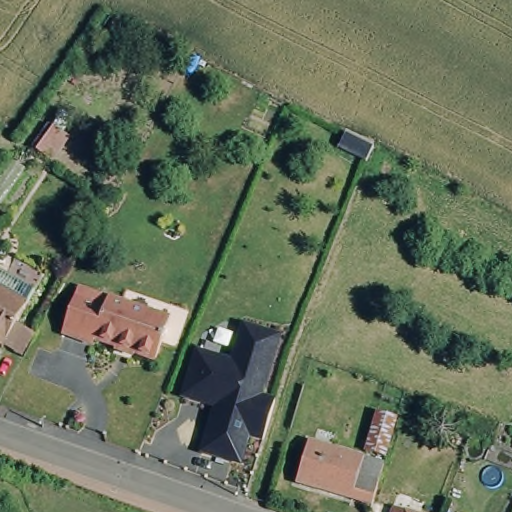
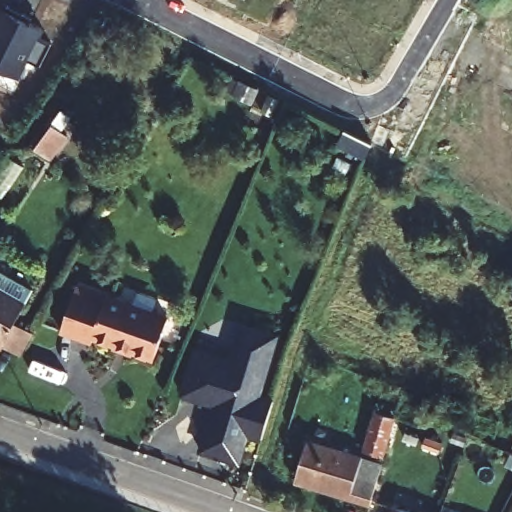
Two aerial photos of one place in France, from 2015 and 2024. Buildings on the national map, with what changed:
new [(43,36),(50,39),(39,62),(29,57),(19,77),(0,70),(0,16),(4,8),(48,26),(43,36)]
unchanged [(49,155),(34,144),(50,121),(65,131),(49,155)]
new [(346,130),(373,143),(367,158),(339,145),(346,130)]
unchanged [(80,284),(171,316),(157,356),(96,335),(95,340),(64,329),(80,284)]
unchanged [(0,287),(24,301),(0,344),(0,287)]
unchanged [(245,442),(237,470),(198,459),(208,425),(215,427),(220,410),(206,406),(204,411),(179,403),(193,357),(236,370),(241,354),(233,351),(238,332),(275,342),(257,403),(271,407),(259,447),(245,442)]
unchanged [(380,415),(398,420),(387,459),(369,454),(380,415)]
unchanged [(374,507),(301,486),(313,446),(386,466),(374,507)]
unchanged [(405,512),(393,512),(394,508),(405,512)]

